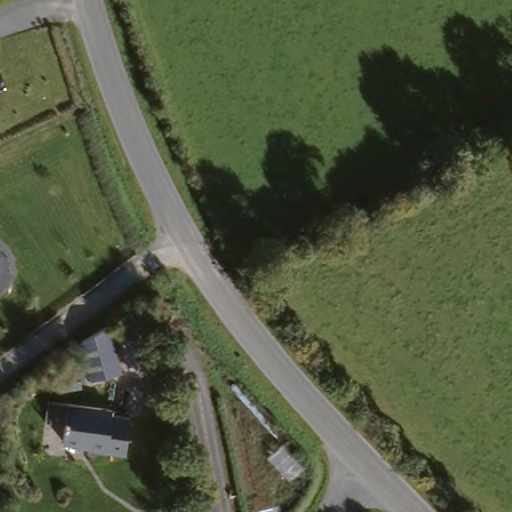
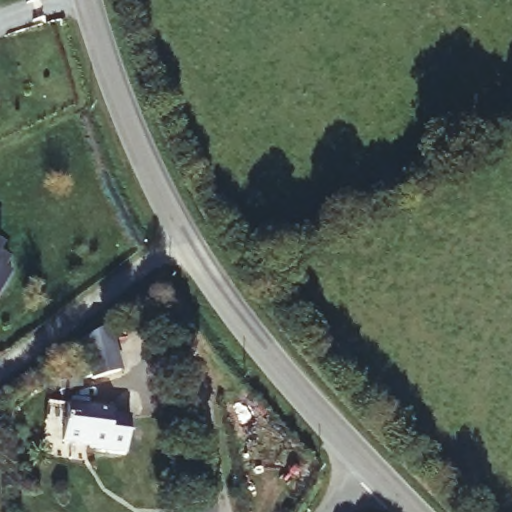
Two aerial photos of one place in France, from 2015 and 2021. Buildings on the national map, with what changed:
unchanged [(9,258),(4,267),(13,273),(0,291),(0,253),(9,258)]
unchanged [(124,369),(94,378),(84,339),(112,323),(124,369)]
unchanged [(125,453),(89,448),(90,442),(64,439),(69,400),(114,407),(113,414),(131,416),(125,453)]

